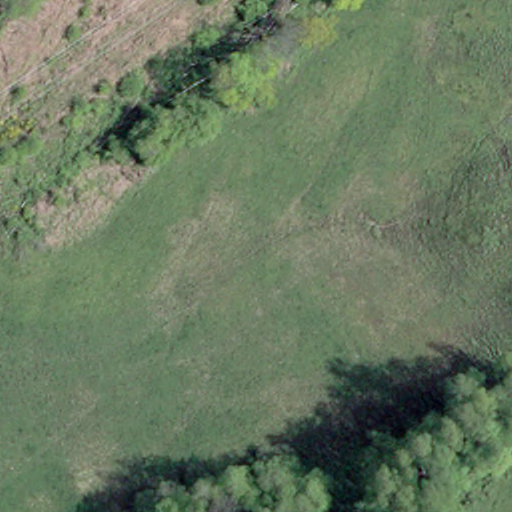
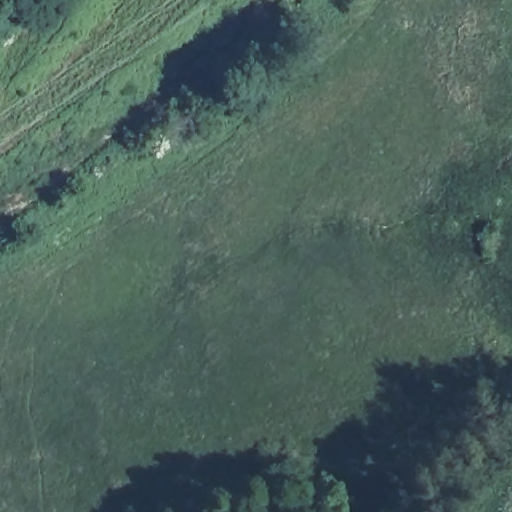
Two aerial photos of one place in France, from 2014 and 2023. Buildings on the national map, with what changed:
[]

